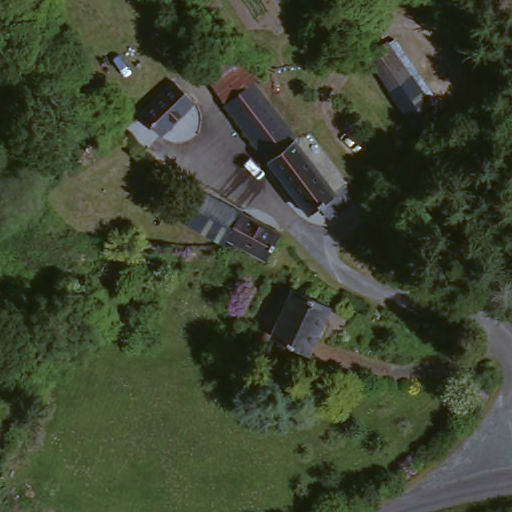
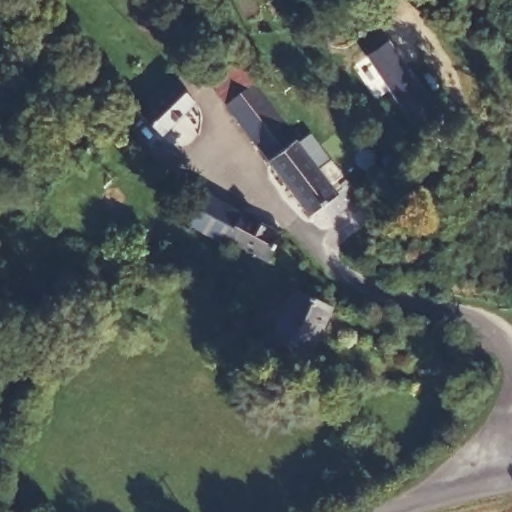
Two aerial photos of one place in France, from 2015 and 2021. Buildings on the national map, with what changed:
unchanged [(428,101),(444,123),(423,139),(372,63),(392,48),(428,101)]
unchanged [(220,110),(200,83),(230,58),(252,85),(248,88),(220,110)]
unchanged [(294,140),(292,143),(339,212),(325,224),(314,212),(303,220),(220,110),(248,88),(294,140)]
unchanged [(222,245),(186,226),(204,196),(239,215),(224,241),(222,245)]
unchanged [(279,236),(266,263),(224,241),(239,215),(279,236)]
unchanged [(308,355),(271,338),(292,291),(328,309),(308,355)]

